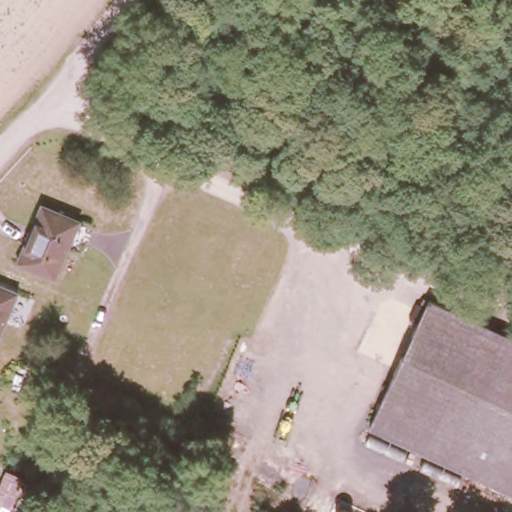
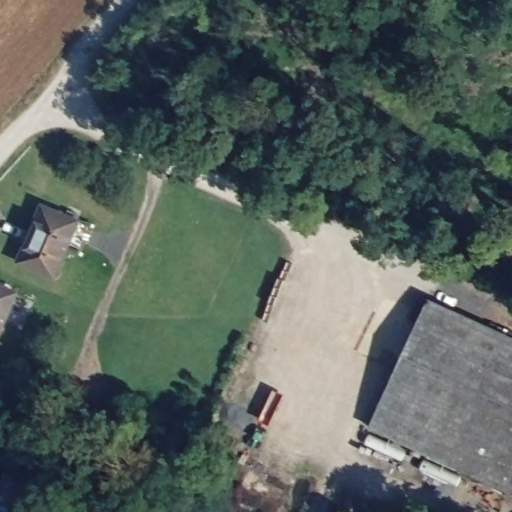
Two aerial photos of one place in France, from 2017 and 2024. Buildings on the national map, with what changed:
unchanged [(50,204),(84,218),(58,275),(25,260),(50,204)]
unchanged [(22,289),(0,338),(0,280),(22,289)]
unchanged [(512,333),(512,485),(375,421),(435,296),(512,333)]

